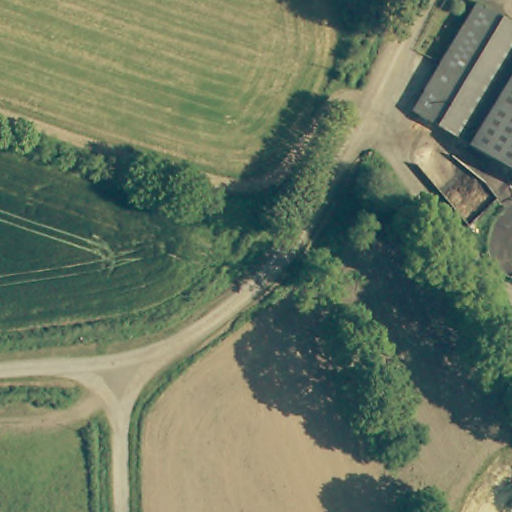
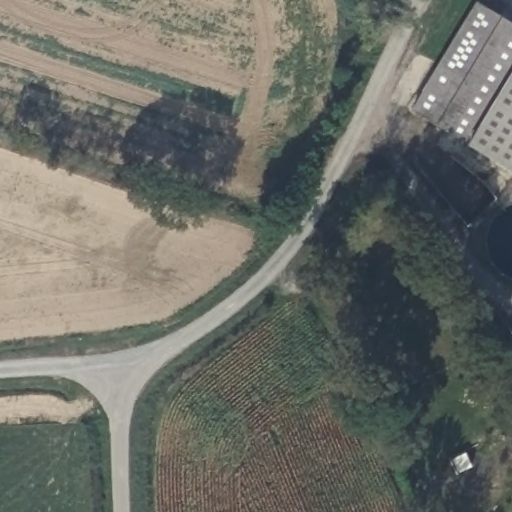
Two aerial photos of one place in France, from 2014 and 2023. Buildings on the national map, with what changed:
unchanged [(414,113),(477,8),(502,23),(439,128),(414,113)]
unchanged [(502,23),(512,30),(512,172),(439,128),(502,23)]

